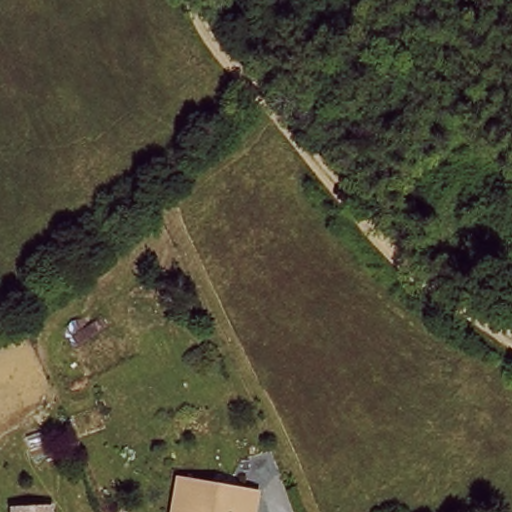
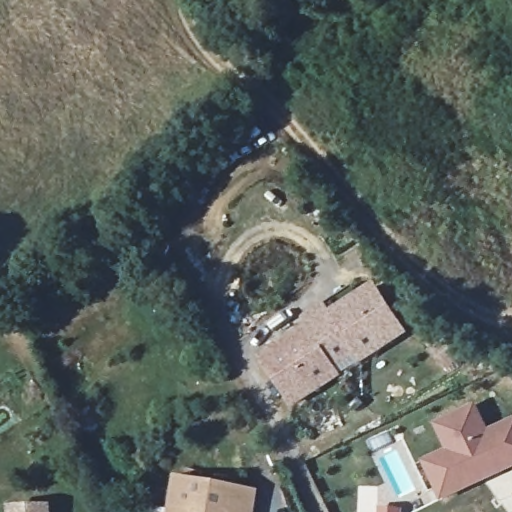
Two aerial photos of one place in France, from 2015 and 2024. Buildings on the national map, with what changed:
new [(275,348),(272,340),(324,304),(351,286),(357,296),(377,283),(410,333),(363,365),(361,362),(342,374),(344,376),(294,409),(260,358),(275,348)]
new [(434,425),(477,405),(490,431),(512,420),(512,470),(442,504),(423,462),(445,451),(434,425)]
unchanged [(242,492),(237,512),(175,512),(176,510),(182,479),(242,492)]
unchanged [(20,511),(58,512),(20,512),(20,511)]

